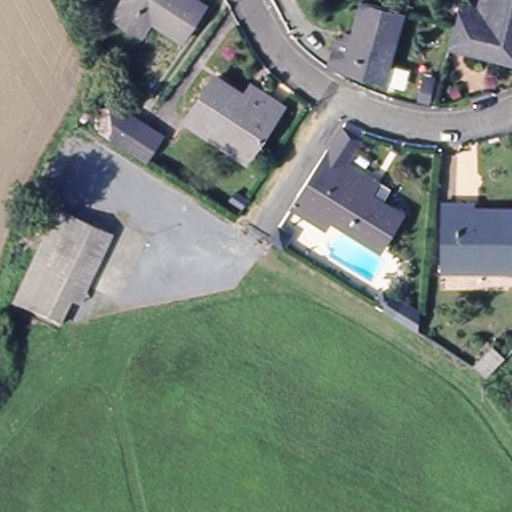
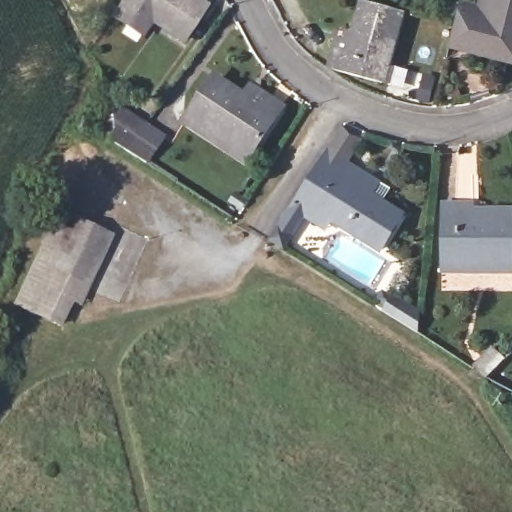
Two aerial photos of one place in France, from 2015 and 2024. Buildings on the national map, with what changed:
unchanged [(128,0),(201,0),(210,6),(187,39),(156,18),(147,33),(119,15),(128,0)]
unchanged [(388,83),(383,82),(330,67),(338,37),(353,41),(364,0),(403,11),(387,66),(392,67),(388,83)]
unchanged [(459,44),(463,25),(469,0),(471,0),(485,3),(485,0),(512,0),(512,59),(459,44)]
unchanged [(215,143),(184,124),(194,109),(214,78),(241,95),(250,80),(259,86),(286,104),(256,148),(246,163),(215,143)]
unchanged [(431,103),(420,100),(424,86),(434,89),(431,103)]
unchanged [(149,160),(131,149),(103,131),(111,102),(148,125),(164,136),(149,160)]
unchanged [(351,124),(369,136),(353,160),(379,178),(384,182),(376,195),(406,214),(385,247),(339,216),(332,226),(299,204),(305,195),(335,148),(351,124)]
unchanged [(246,206),(236,200),(242,191),(251,198),(246,206)]
unchanged [(463,269),(444,269),(444,202),(474,201),(474,218),(512,218),(512,257),(486,257),(485,269),(463,269)]
unchanged [(20,307),(63,215),(96,231),(104,235),(75,295),(67,291),(51,322),(20,307)]
unchanged [(280,234),(287,223),(300,232),(293,246),(279,237),(280,234)]
unchanged [(477,365),(493,348),(504,358),(492,371),(488,375),(477,365)]

